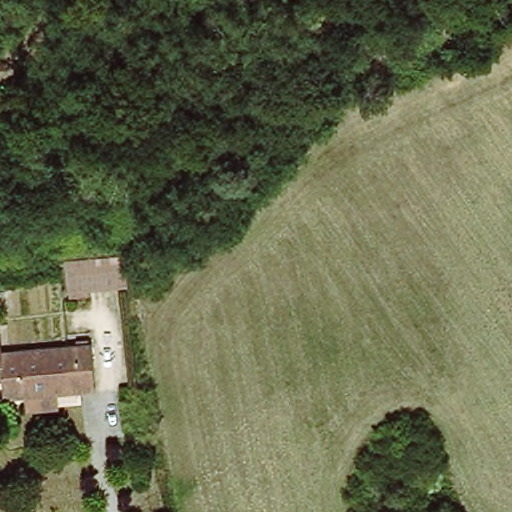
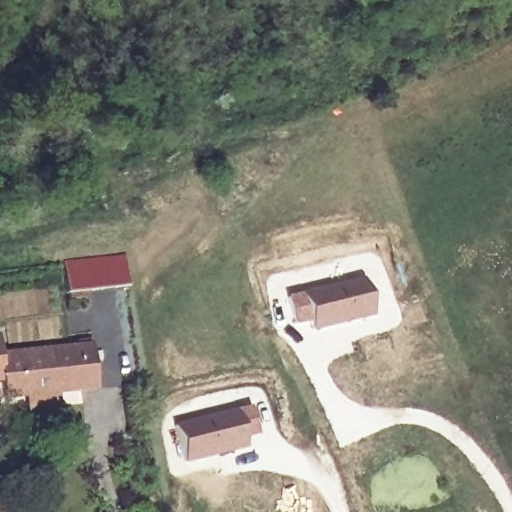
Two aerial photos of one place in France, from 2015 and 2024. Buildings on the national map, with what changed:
unchanged [(125,257),(130,286),(71,297),(65,265),(101,260),(125,257)]
new [(360,275),(372,316),(310,332),(307,323),(293,326),(286,296),(360,275)]
unchanged [(9,352),(95,342),(102,390),(12,400),(10,382),(0,383),(0,335),(7,334),(9,352)]
new [(250,405),(257,435),(243,438),(245,448),(185,462),(176,424),(250,405)]

